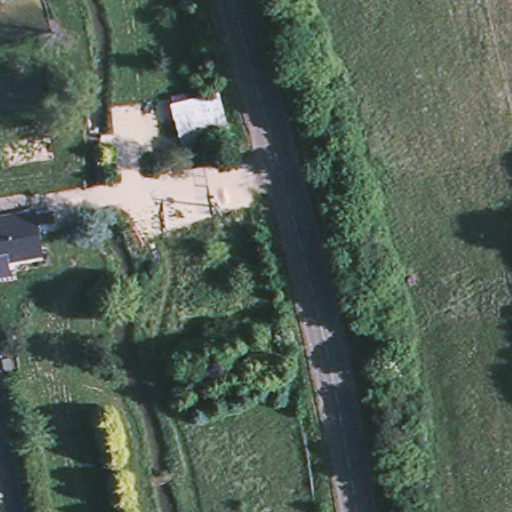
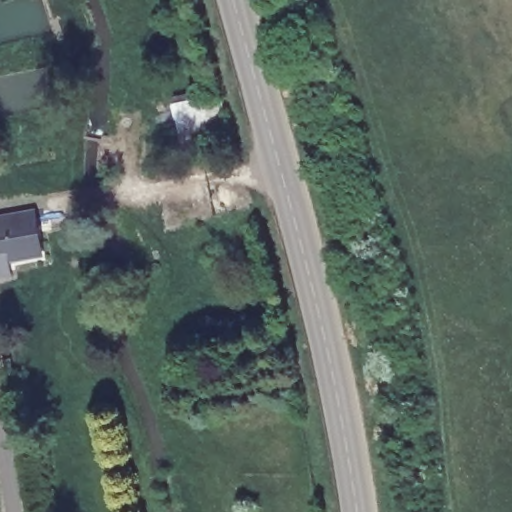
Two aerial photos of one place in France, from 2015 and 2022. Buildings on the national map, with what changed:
unchanged [(214,94),(227,141),(185,151),(172,104),(207,95),(214,94)]
unchanged [(7,255),(8,265),(0,267),(0,215),(21,212),(28,211),(30,230),(33,251),(7,255)]

